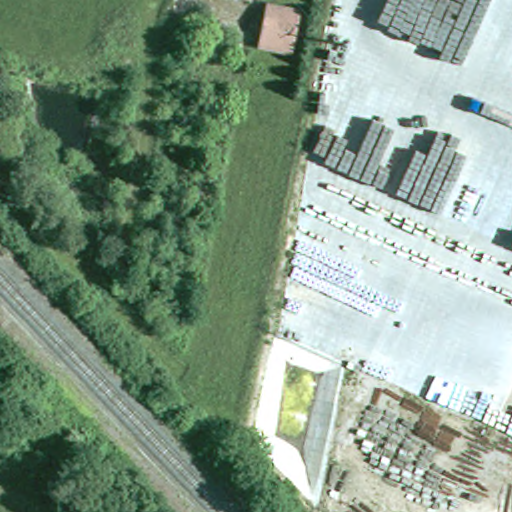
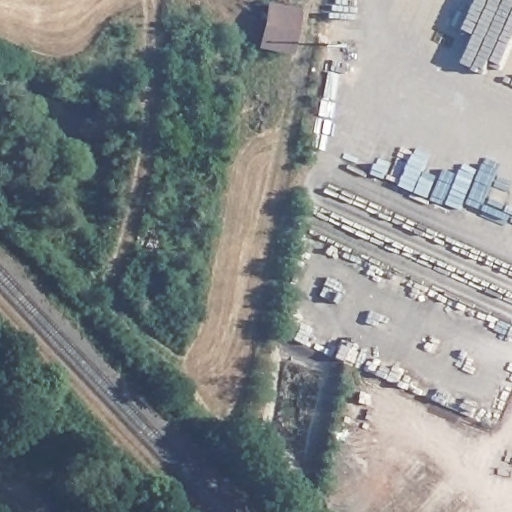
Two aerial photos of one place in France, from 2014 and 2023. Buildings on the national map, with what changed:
unchanged [(299,13),(290,51),(260,44),(269,6),(299,13)]

